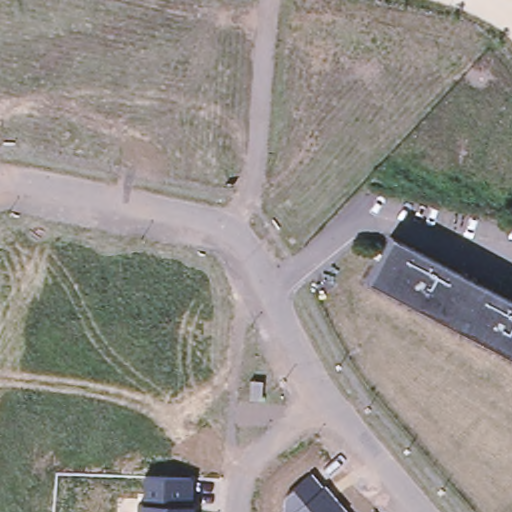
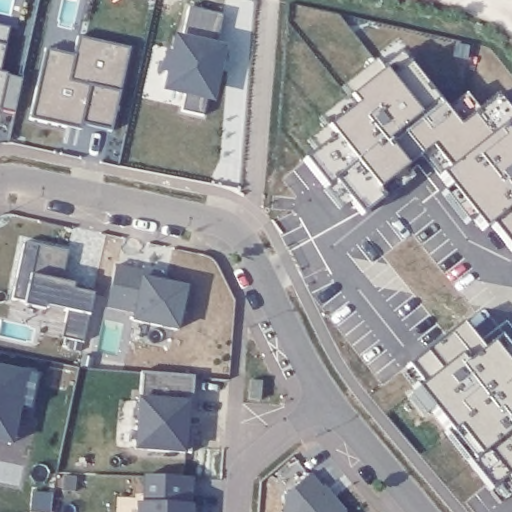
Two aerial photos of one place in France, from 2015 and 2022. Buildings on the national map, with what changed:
new [(223,15),(220,41),(228,42),(218,103),(207,101),(205,115),(185,111),(187,94),(165,90),(176,33),(186,36),(192,7),(223,15)]
unchanged [(0,61),(0,27),(7,29),(0,61)]
new [(40,79),(68,82),(78,39),(127,51),(111,130),(81,121),(82,115),(67,112),(65,122),(32,116),(40,79)]
new [(414,179),(387,200),(385,198),(362,216),(350,201),(340,210),(324,190),(326,189),(326,188),(303,160),(315,150),(307,140),(325,126),(319,119),(347,96),(342,89),(376,60),(382,69),(402,53),(409,64),(447,110),(466,95),(478,110),(460,126),(497,95),(512,114),(512,251),(492,224),(483,230),(474,219),(466,225),(442,194),(450,187),(423,154),(420,157),(406,167),(414,179)]
unchanged [(0,104),(0,71),(5,71),(0,104)]
demolished [(336,216),(337,202),(337,187),(362,188),(360,204),(360,216),(336,216)]
demolished [(389,237),(512,303),(512,360),(365,281),(389,237)]
new [(70,252),(62,283),(75,285),(73,290),(93,294),(83,342),(65,338),(68,321),(65,320),(67,310),(10,298),(23,241),(70,252)]
unchanged [(145,273),(145,270),(160,274),(157,283),(190,290),(185,312),(180,311),(177,327),(134,319),(135,312),(107,305),(116,266),(145,273)]
new [(467,320),(488,346),(504,332),(512,343),(512,474),(491,447),(485,453),(465,423),(460,427),(420,380),(424,377),(412,361),(467,320)]
new [(12,447),(0,444),(0,368),(27,373),(12,447)]
new [(142,372),(194,377),(192,406),(187,405),(185,426),(192,427),(188,452),(135,447),(142,372)]
unchanged [(323,484),(327,482),(351,512),(283,512),(284,494),(313,471),(323,484)]
unchanged [(195,476),(193,512),(136,512),(137,502),(142,503),(143,475),(195,476)]

